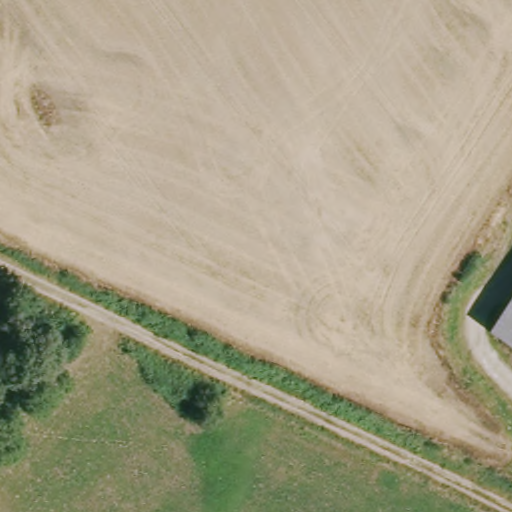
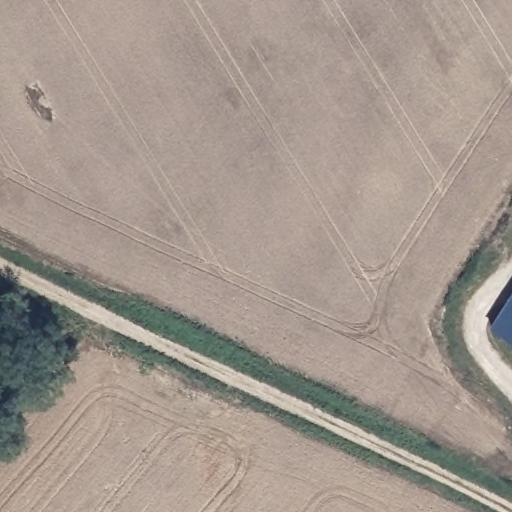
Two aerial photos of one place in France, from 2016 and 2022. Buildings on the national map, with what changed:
unchanged [(512,321),(512,336),(506,332),(512,321)]

